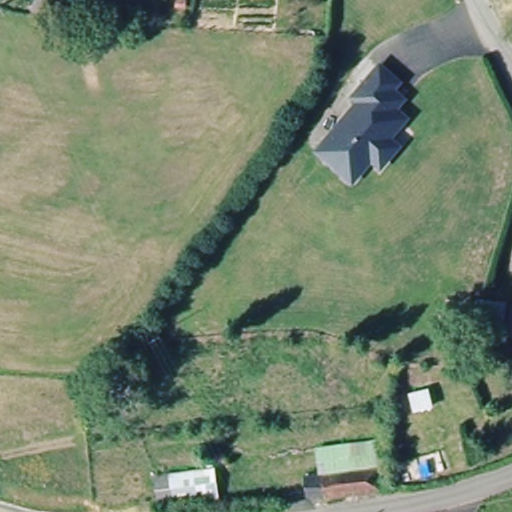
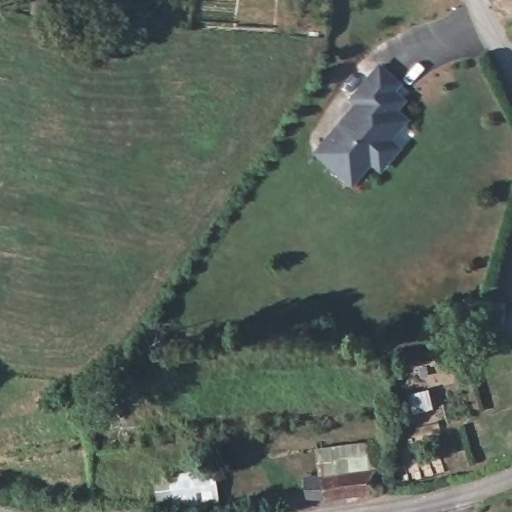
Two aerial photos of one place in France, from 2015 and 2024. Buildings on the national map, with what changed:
unchanged [(387,91),(403,106),(403,116),(346,175),(314,143),(357,98),(352,91),(381,61),(398,78),(387,91)]
unchanged [(511,307),(503,342),(474,334),(485,301),(511,307)]
unchanged [(315,447),(377,437),(384,465),(370,467),(319,479),(315,447)]
unchanged [(215,467),(220,500),(158,509),(153,475),(215,467)]
unchanged [(325,507),(325,500),(306,504),(302,484),(370,467),(377,495),(325,507)]

